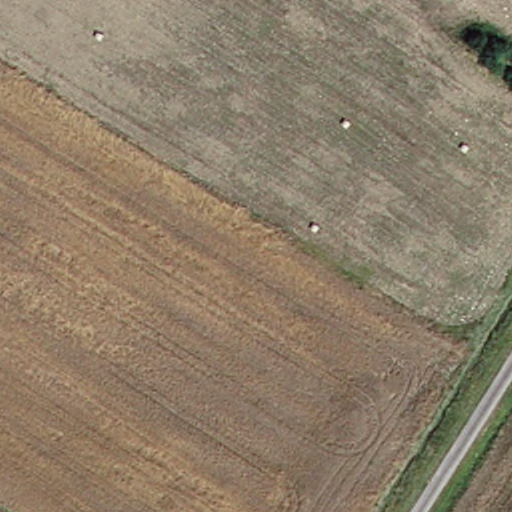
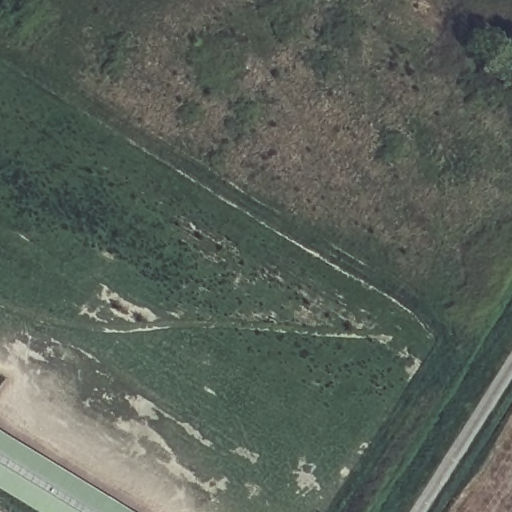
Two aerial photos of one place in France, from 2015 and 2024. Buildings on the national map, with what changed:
new [(136,512),(48,512),(0,483),(0,429),(136,512)]

